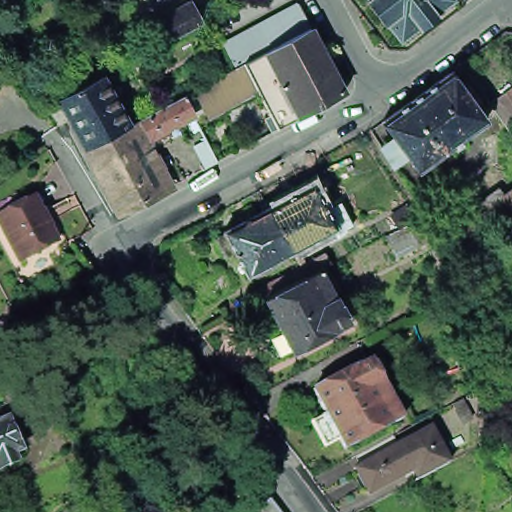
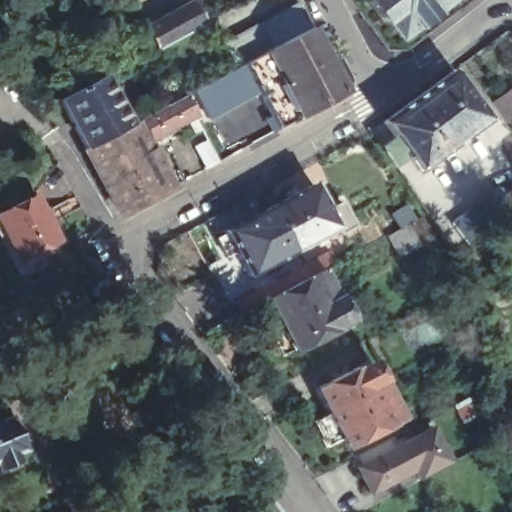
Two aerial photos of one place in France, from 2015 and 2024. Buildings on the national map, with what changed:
unchanged [(154,22),(152,19),(169,10),(187,0),(189,3),(190,2),(202,24),(182,34),(165,43),(157,48),(145,26),(154,22)]
unchanged [(436,13),(438,16),(420,29),(419,28),(401,41),(388,24),(385,26),(366,0),(367,0),(454,0),(436,13)]
unchanged [(224,48),(237,41),(249,35),(260,28),(272,22),(285,15),(299,8),(311,31),(345,97),(279,134),(260,98),(258,94),(223,114),(209,122),(193,95),(208,87),(214,84),(236,72),(224,48)]
unchanged [(24,51),(29,59),(20,64),(15,56),(24,51)]
unchanged [(397,137),(385,121),(452,71),(488,120),(420,170),(409,154),(395,163),(384,146),(397,137)]
unchanged [(154,116),(183,101),(192,118),(194,120),(150,143),(160,162),(165,172),(155,177),(165,196),(120,217),(86,153),(60,105),(80,94),(104,81),(130,130),(140,124),(154,116)]
unchanged [(512,88),(512,126),(510,127),(492,102),(512,88)]
unchanged [(194,146),(206,139),(217,162),(207,168),(194,146)]
unchanged [(271,207),(314,183),(328,209),(342,201),(354,223),(355,224),(340,232),(340,230),(337,228),(295,251),(271,207)]
unchanged [(489,226),(462,246),(447,224),(472,205),(493,190),(500,197),(512,188),(512,209),(510,210),(489,226)]
unchanged [(0,217),(0,214),(35,195),(59,240),(22,259),(0,217)]
unchanged [(219,239),(228,233),(227,231),(271,207),(295,251),(250,276),(237,252),(228,257),(219,239)]
unchanged [(432,237),(404,253),(393,234),(422,218),(432,237)]
unchanged [(277,329),(263,304),(280,295),(275,285),(299,272),(322,259),(328,269),(317,275),(344,325),(335,330),(337,333),(292,357),(290,354),(280,360),(266,335),(277,329)]
unchanged [(115,292),(102,302),(91,289),(105,278),(115,292)]
unchanged [(310,416),(324,408),(310,383),(355,360),(357,363),(367,358),(381,384),(397,415),(342,444),(337,433),(323,440),(310,416)]
unchanged [(14,374),(22,392),(6,400),(0,389),(0,381),(14,374)]
unchanged [(0,468),(0,422),(8,418),(21,448),(15,451),(19,460),(0,468)]
unchanged [(358,468),(434,427),(452,463),(420,480),(377,503),(372,494),(358,468)]
unchanged [(282,511),(282,512),(255,512),(272,499),(282,511)]

